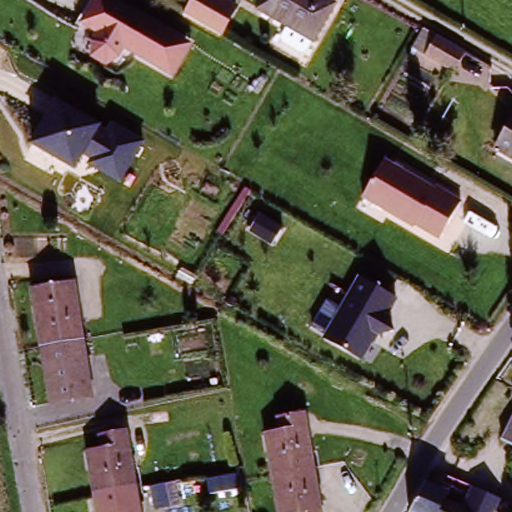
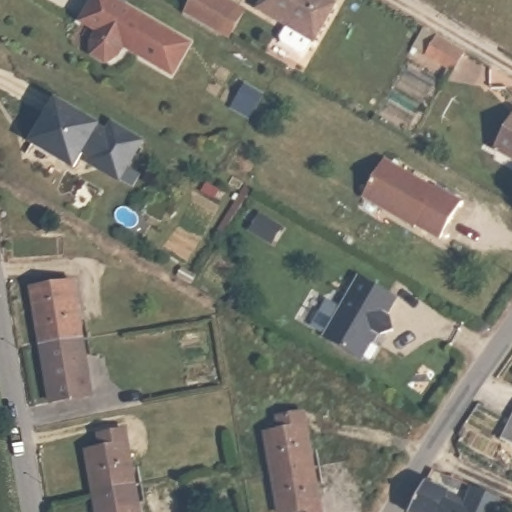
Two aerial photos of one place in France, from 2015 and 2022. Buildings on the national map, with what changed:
unchanged [(191,44),(173,79),(126,52),(121,61),(108,68),(90,61),(91,44),(95,35),(79,25),(93,0),(115,0),(191,44)]
unchanged [(191,0),(229,0),(239,6),(222,36),(183,15),(191,0)]
unchanged [(296,55),(276,44),(284,26),(254,10),(260,0),(328,0),(335,4),(316,38),(313,35),(302,53),(296,55)]
unchanged [(457,74),(429,58),(440,38),(469,54),(457,74)]
unchanged [(108,129),(112,123),(146,143),(121,185),(88,166),(91,160),(85,156),(76,173),(31,146),(56,99),(108,129)]
unchanged [(504,141),(512,129),(512,146),(504,141)]
unchanged [(458,202),(438,240),(413,227),(411,229),(360,200),(381,162),(430,190),(433,188),(458,202)]
unchanged [(398,300),(389,317),(391,319),(394,333),(379,338),(376,337),(362,363),(321,340),(357,277),(398,300)]
unchanged [(34,292),(68,287),(73,307),(78,307),(84,340),(44,347),(38,314),(34,292)]
unchanged [(44,347),(84,340),(92,376),(85,377),(88,399),(53,405),(48,384),(44,347)]
unchanged [(284,431),(281,417),(304,413),(306,427),(309,426),(318,470),(276,477),(269,433),(284,431)]
unchanged [(512,417),(512,448),(499,441),(512,417)]
unchanged [(90,455),(105,452),(103,437),(126,433),(129,448),(133,447),(138,488),(96,495),(90,455)]
unchanged [(295,512),(282,512),(276,477),(318,470),(324,507),(319,508),(320,512),(298,512),(295,512)]
unchanged [(450,498),(445,507),(456,512),(414,512),(429,487),(450,498)]
unchanged [(138,488),(143,512),(99,512),(96,495),(138,488)]
unchanged [(482,493),(496,498),(493,505),(489,511),(489,512),(460,512),(470,488),(482,493)]

